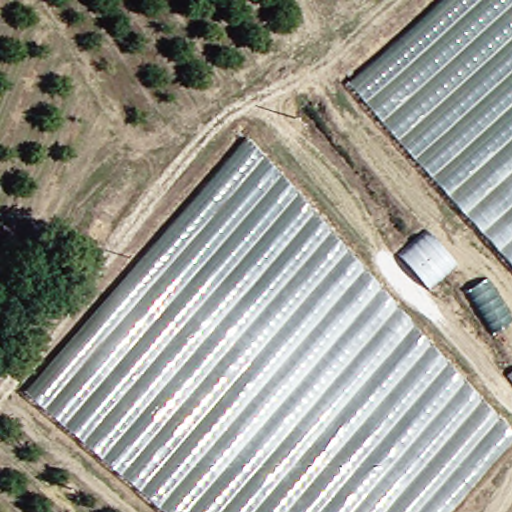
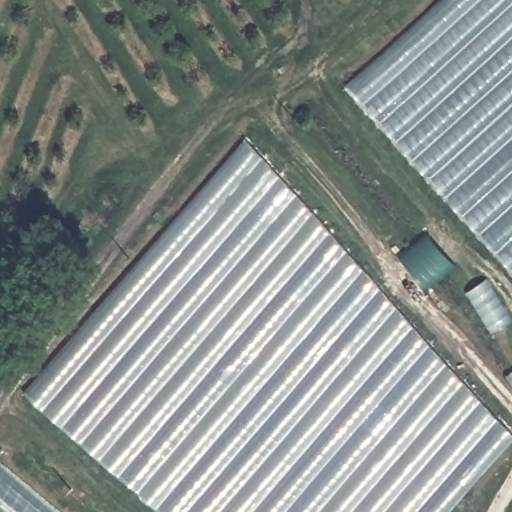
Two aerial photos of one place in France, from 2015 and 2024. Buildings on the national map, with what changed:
unchanged [(355,87),(454,0),(512,0),(512,261),(355,87)]
unchanged [(441,512),(172,512),(40,397),(248,146),(509,436),(441,512)]
new [(0,458),(64,512),(0,512),(0,458)]

